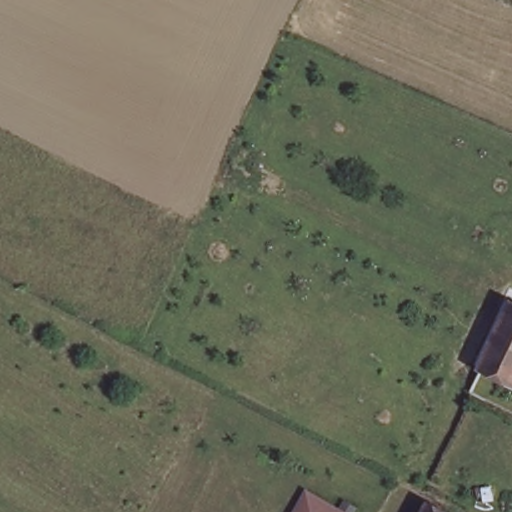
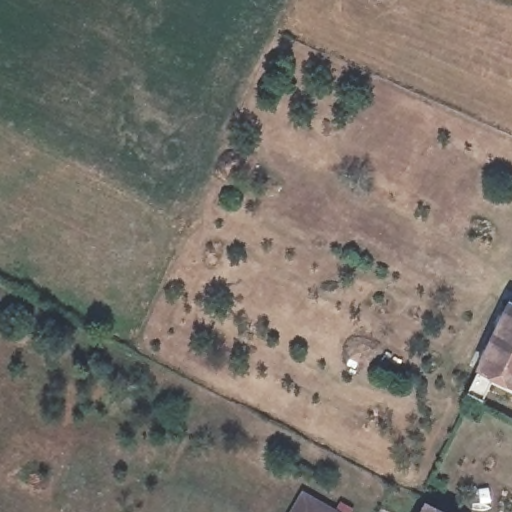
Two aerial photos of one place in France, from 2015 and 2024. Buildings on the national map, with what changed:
unchanged [(512,305),(512,384),(480,368),(512,305)]
unchanged [(338,512),(287,512),(301,489),(338,512)]
unchanged [(445,512),(426,512),(430,503),(445,512)]

